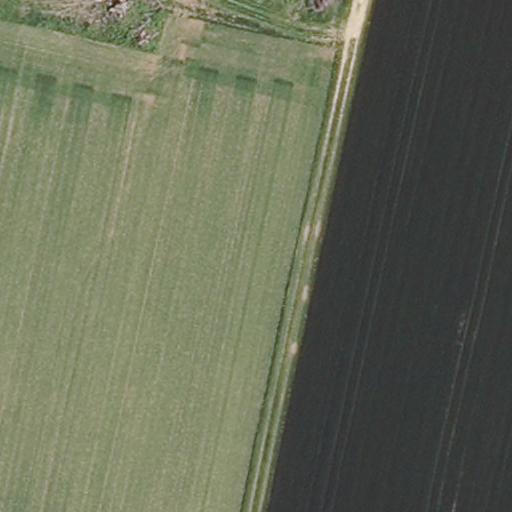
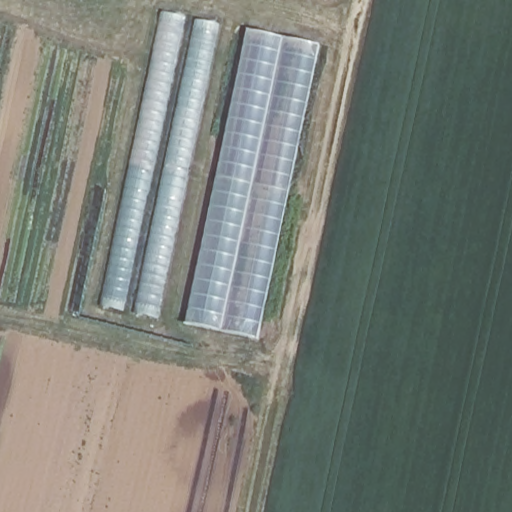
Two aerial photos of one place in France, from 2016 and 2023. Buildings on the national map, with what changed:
new [(162,13),(218,25),(157,318),(100,306),(162,13)]
new [(248,32),(318,45),(257,340),(186,326),(248,32)]

